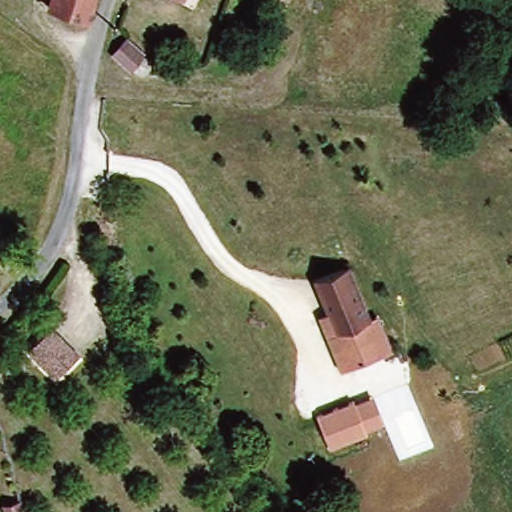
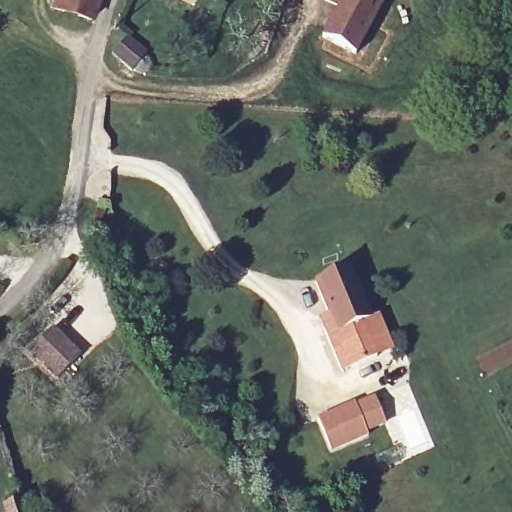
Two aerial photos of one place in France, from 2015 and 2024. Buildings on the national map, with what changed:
unchanged [(94,17),(51,3),(52,0),(100,0),(94,17)]
new [(358,55),(323,37),(341,0),(385,0),(386,1),(358,55)]
unchanged [(149,71),(143,72),(125,56),(117,49),(131,31),(148,46),(153,62),(149,71)]
unchanged [(336,325),(318,281),(354,267),(375,321),(365,325),(379,360),(346,374),(326,330),(336,325)]
unchanged [(57,375),(30,344),(53,323),(80,352),(57,375)]
unchanged [(384,424),(368,431),(369,436),(336,449),(321,417),(356,401),(359,404),(377,395),(384,424)]
unchanged [(24,505),(27,512),(9,512),(8,507),(24,505)]

